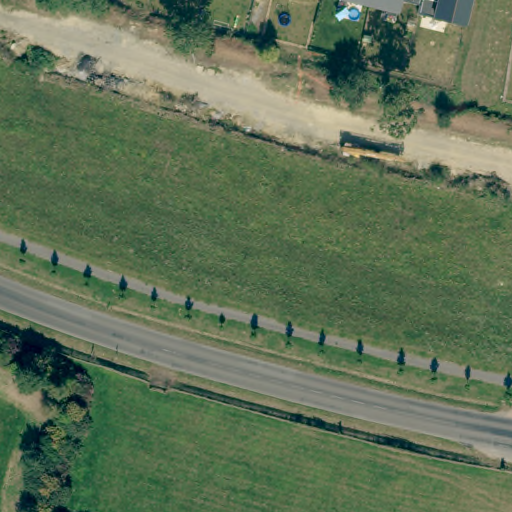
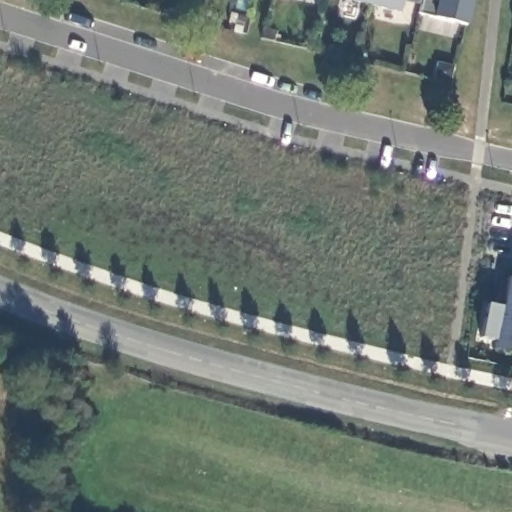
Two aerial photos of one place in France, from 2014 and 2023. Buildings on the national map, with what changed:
unchanged [(466,27),(434,18),(418,15),(419,7),(401,2),(399,13),(344,0),(473,0),(466,27)]
new [(495,341),(479,338),(486,303),(501,307),(508,277),(512,278),(512,352),(492,348),(495,341)]

